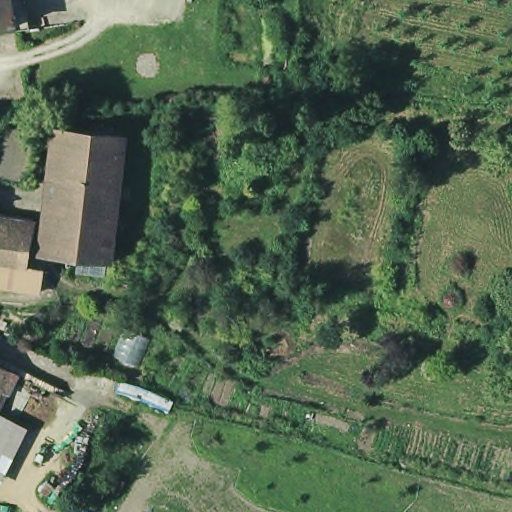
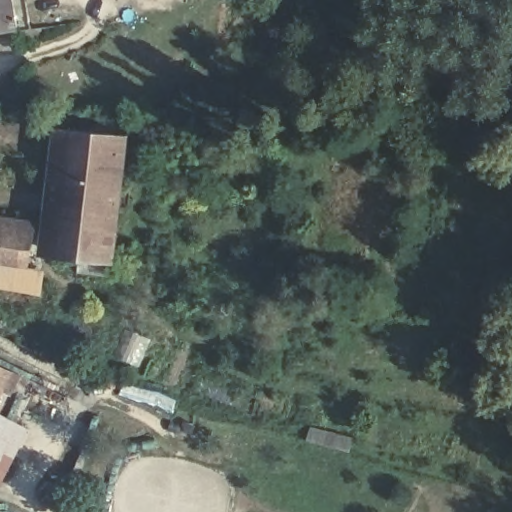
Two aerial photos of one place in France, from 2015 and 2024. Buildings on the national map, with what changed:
unchanged [(12,26),(0,28),(0,0),(22,0),(23,12),(25,23),(12,25),(12,26)]
unchanged [(44,261),(58,136),(109,142),(94,267),(44,261)]
unchanged [(0,278),(0,219),(28,225),(23,257),(21,264),(38,267),(34,284),(0,278)]
unchanged [(22,370),(3,414),(32,429),(6,492),(0,489),(0,360),(22,370)]

